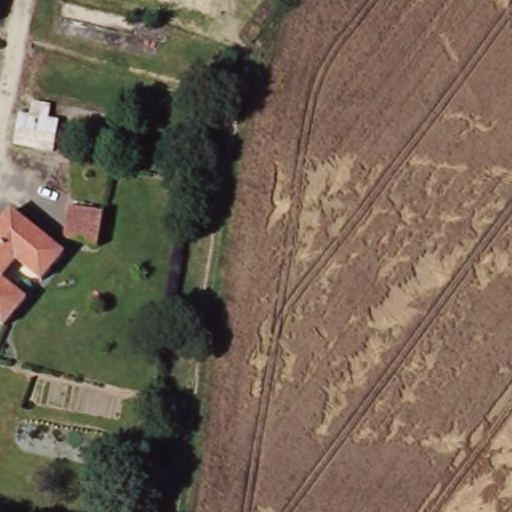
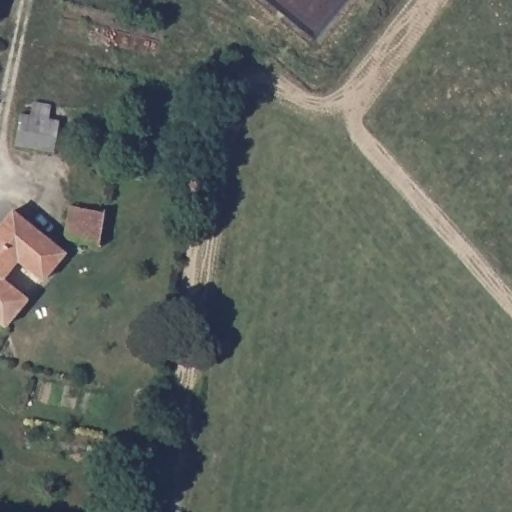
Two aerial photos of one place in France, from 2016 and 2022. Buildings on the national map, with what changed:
unchanged [(21,114),(32,115),(33,100),(58,104),(57,115),(80,119),(77,133),(61,131),(57,149),(17,142),(21,114)]
unchanged [(73,204),(107,211),(99,246),(65,239),(73,204)]
unchanged [(14,209),(68,254),(45,281),(20,261),(4,280),(29,300),(6,328),(0,324),(0,225),(14,209)]

